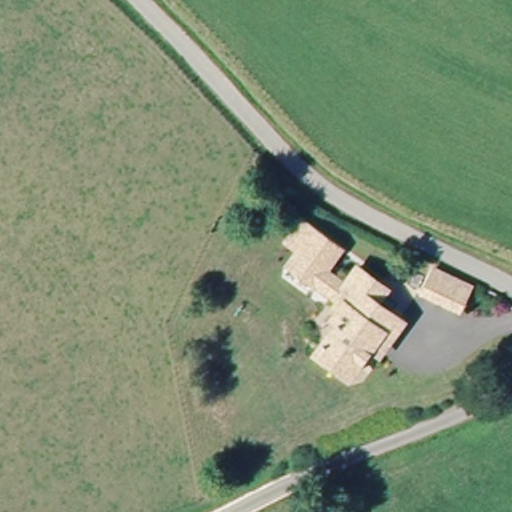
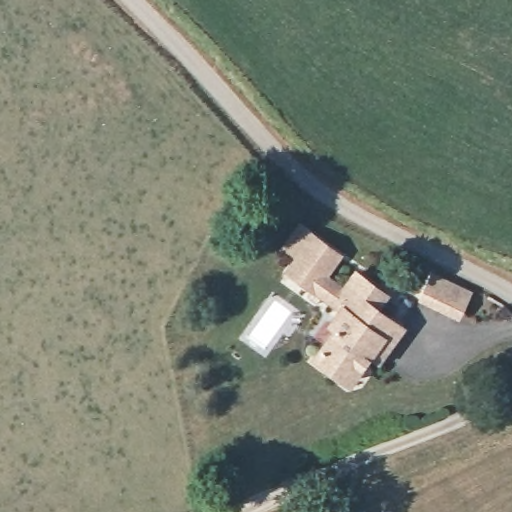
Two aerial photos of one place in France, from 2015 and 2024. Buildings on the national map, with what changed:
unchanged [(332,366),(315,352),(336,326),(331,320),(345,305),(295,265),(306,251),(292,239),(306,221),(344,251),(328,271),(347,286),(360,270),(391,295),(381,308),(406,329),(393,344),(381,358),(373,352),(359,370),(350,381),(332,366)]
unchanged [(440,276),(475,293),(466,309),(460,320),(425,302),(431,291),(440,276)]

